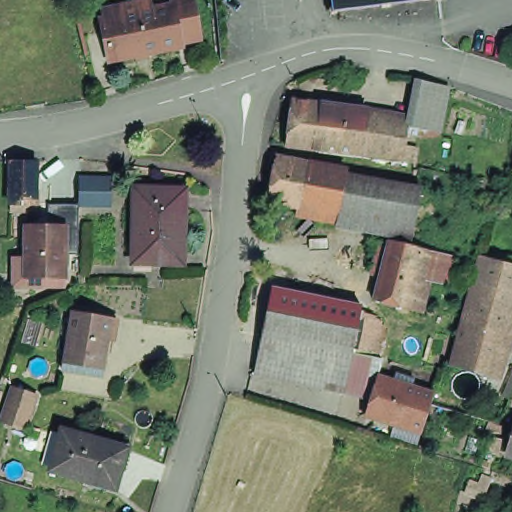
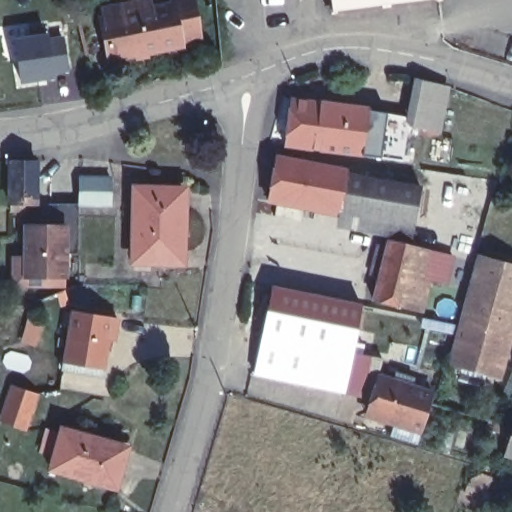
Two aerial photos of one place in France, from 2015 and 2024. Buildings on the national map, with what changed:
demolished [(5,8),(5,0),(30,0),(29,9),(42,10),(42,25),(29,25),(27,52),(3,51),(5,8)]
unchanged [(179,37),(179,40),(144,48),(135,50),(110,56),(100,16),(104,15),(102,6),(131,0),(149,0),(150,4),(170,0),(197,0),(200,32),(179,37)]
unchanged [(330,0),(365,0),(330,4),(330,0)]
new [(48,30),(49,35),(64,33),(70,73),(20,84),(6,36),(48,30)]
unchanged [(442,122),(415,116),(422,76),(449,80),(442,122)]
unchanged [(383,152),(365,149),(347,147),(289,139),(295,94),(351,102),(371,105),(389,108),(412,111),(406,155),(383,152)]
unchanged [(315,203),(271,195),(278,151),(323,160),(315,203)]
unchanged [(9,195),(9,158),(36,157),(36,202),(9,202),(9,195)]
unchanged [(350,165),(341,208),(315,203),(323,160),(350,165)]
unchanged [(430,180),(422,223),(341,208),(350,165),(430,180)]
unchanged [(78,196),(79,171),(109,172),(109,201),(78,201),(78,196)]
unchanged [(181,178),(180,214),(175,214),(175,251),(150,250),(150,245),(132,245),(132,178),(181,178)]
unchanged [(42,274),(21,273),(22,261),(35,262),(35,218),(73,219),(72,233),(72,265),(71,275),(42,274)]
unchanged [(414,261),(400,320),(352,308),(358,282),(350,280),(357,254),(365,256),(367,249),(414,261)]
unchanged [(512,261),(512,305),(467,292),(478,251),(512,261)]
unchanged [(323,400),(235,382),(243,344),(244,342),(242,342),(247,317),(250,301),(255,277),(274,282),(344,296),(340,320),(339,324),(357,328),(350,363),(343,404),(323,400)]
unchanged [(448,355),(455,329),(460,311),(467,292),(512,305),(512,311),(509,325),(503,343),(496,369),(448,355)]
unchanged [(55,362),(57,354),(65,310),(105,317),(111,318),(105,352),(98,351),(96,362),(95,368),(55,362)]
unchanged [(389,417),(366,410),(378,372),(427,386),(425,396),(417,422),(415,425),(389,417)]
unchanged [(17,385),(40,393),(28,426),(5,418),(17,385)]
unchanged [(59,422),(124,441),(112,482),(47,463),(59,422)]
unchanged [(510,434),(512,427),(512,435),(510,434)]
unchanged [(505,454),(510,434),(512,435),(512,456),(505,454)]

